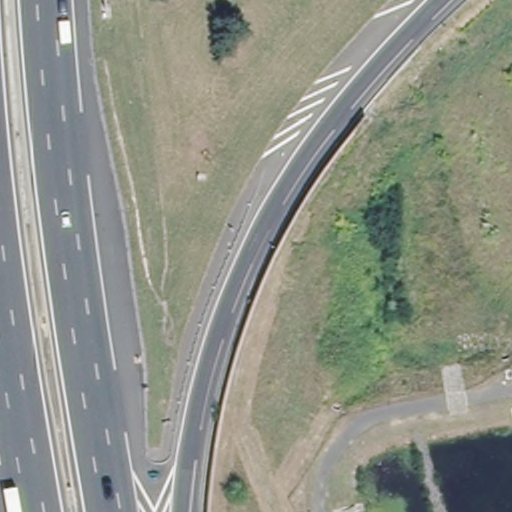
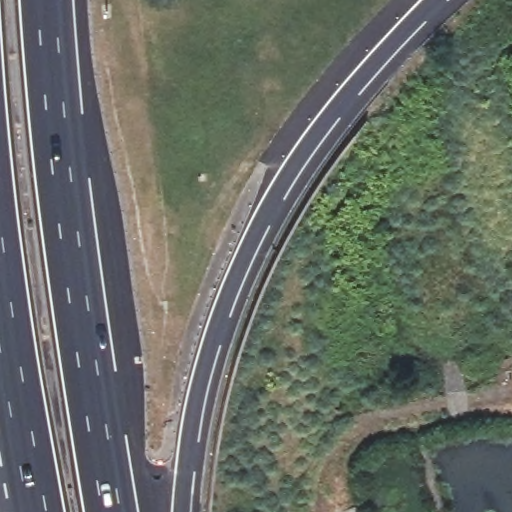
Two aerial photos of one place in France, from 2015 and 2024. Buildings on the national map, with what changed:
unchanged [(492,355),(503,350),(508,360),(498,365),(492,355)]

